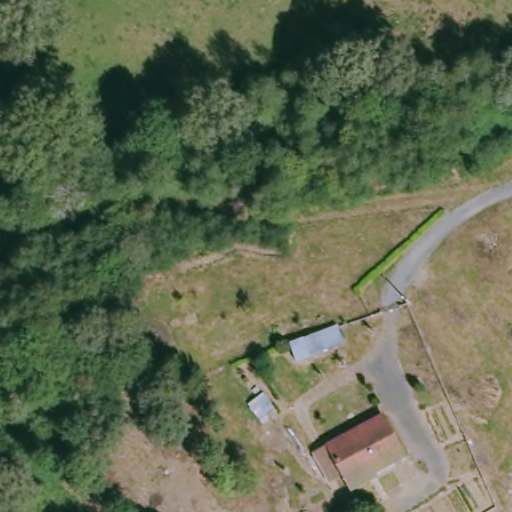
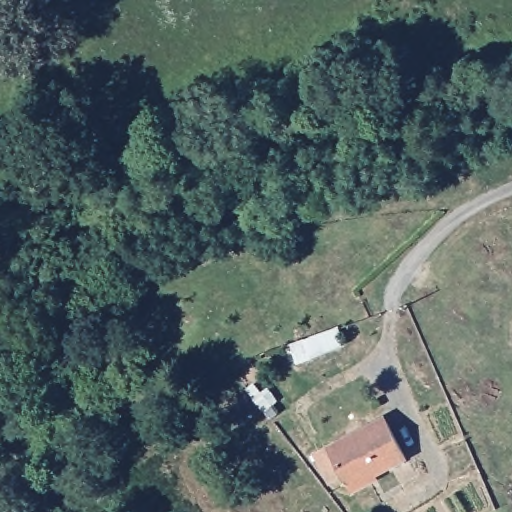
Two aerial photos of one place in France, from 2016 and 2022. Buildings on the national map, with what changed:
unchanged [(341,324),(353,346),(301,366),(294,341),(341,324)]
unchanged [(409,456),(377,474),(375,469),(352,481),(348,474),(335,482),(319,455),(388,417),(409,456)]

